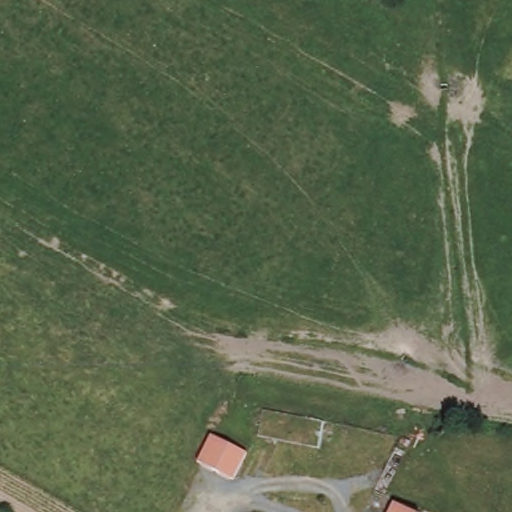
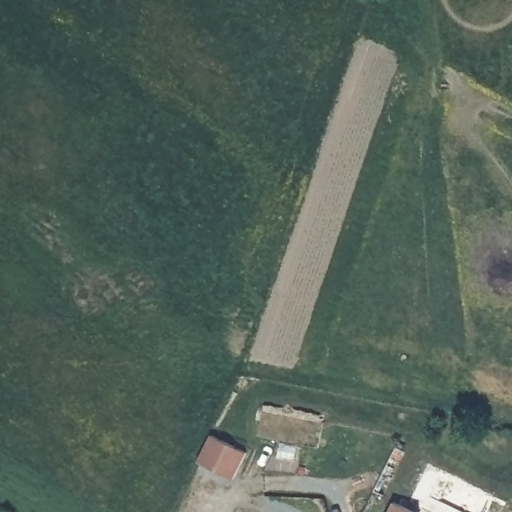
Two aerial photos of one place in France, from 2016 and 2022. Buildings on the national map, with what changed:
unchanged [(211,435),(247,452),(233,480),(197,461),(211,435)]
unchanged [(399,501),(420,512),(394,512),(399,501)]

